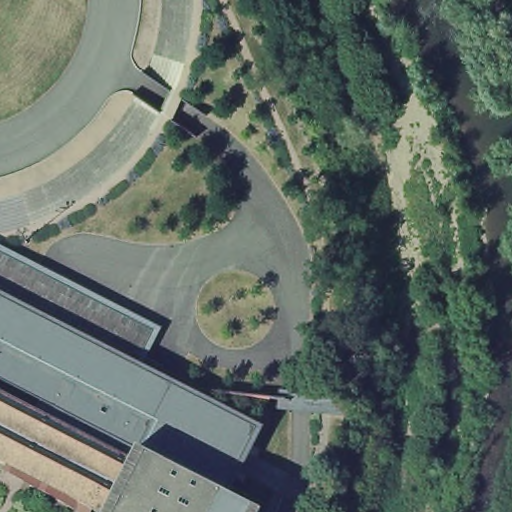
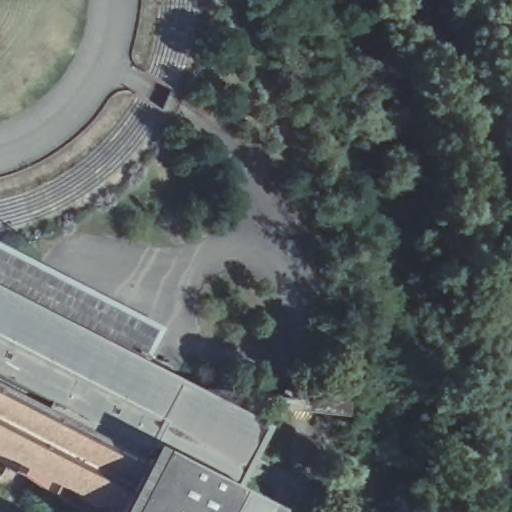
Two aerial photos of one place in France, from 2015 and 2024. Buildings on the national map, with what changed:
unchanged [(283,413),(271,482),(255,512),(82,512),(0,466),(0,296),(283,413)]

